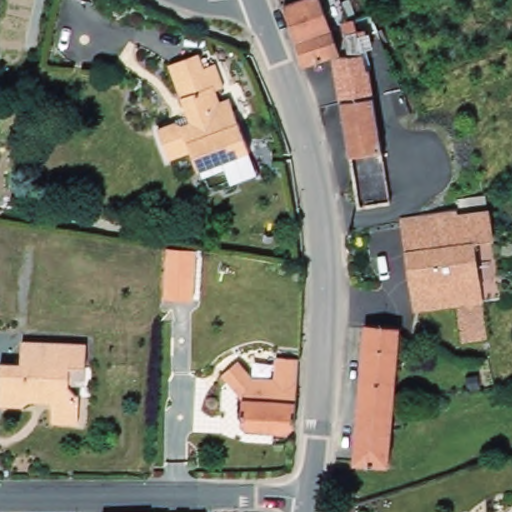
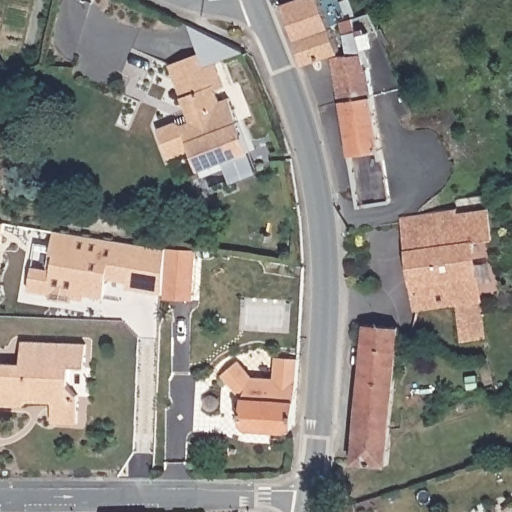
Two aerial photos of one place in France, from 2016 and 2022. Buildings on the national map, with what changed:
unchanged [(293,39),(280,6),(295,0),(320,0),(330,26),(338,50),(301,65),(297,51),(293,39)]
unchanged [(374,23),(368,25),(371,35),(362,37),(364,57),(366,57),(371,99),(337,104),(330,60),(345,57),(342,22),(372,15),(374,23)]
unchanged [(195,96),(182,102),(177,104),(160,59),(189,47),(194,61),(206,56),(215,81),(209,84),(211,90),(195,96)]
unchanged [(182,102),(195,96),(211,90),(213,89),(221,86),(246,153),(196,174),(189,154),(169,162),(166,162),(155,132),(170,125),(176,123),(184,120),(177,104),(182,102)]
unchanged [(371,99),(377,136),(380,151),(346,156),(337,104),(371,99)]
unchanged [(380,151),(387,203),(355,208),(346,156),(380,151)]
unchanged [(396,218),(457,208),(458,213),(489,209),(493,238),(467,239),(401,250),(396,218)]
new [(126,288),(127,282),(106,279),(104,297),(84,295),(84,300),(27,291),(32,266),(51,270),(54,255),(50,254),(52,232),(165,249),(163,294),(126,288)]
unchanged [(460,339),(454,309),(410,315),(410,289),(401,250),(467,239),(474,275),(475,302),(483,337),(460,339)]
new [(165,249),(195,251),(192,301),(162,299),(165,249)]
unchanged [(363,327),(397,331),(388,426),(354,423),(363,327)]
unchanged [(83,345),(82,369),(66,368),(66,386),(73,395),(76,396),(75,424),(49,422),(50,394),(24,393),(23,401),(16,408),(0,406),(0,364),(19,365),(19,342),(83,345)]
unchanged [(250,377),(271,378),(272,356),(298,358),(297,424),(291,433),(243,430),(245,401),(221,376),(236,361),(250,377)]
unchanged [(388,426),(387,432),(384,467),(350,464),(354,423),(388,426)]
unchanged [(150,461),(160,461),(159,470),(149,470),(150,461)]
unchanged [(356,506),(356,512),(331,512),(331,503),(356,506)]

